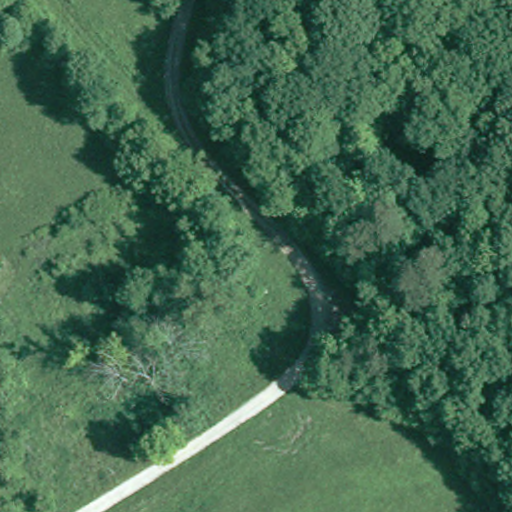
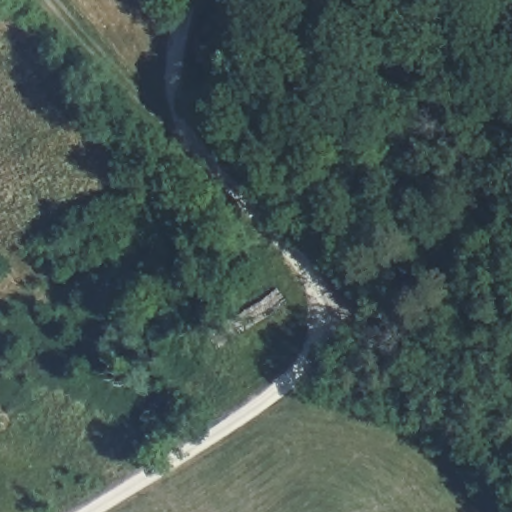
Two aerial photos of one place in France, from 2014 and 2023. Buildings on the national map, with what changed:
[]

